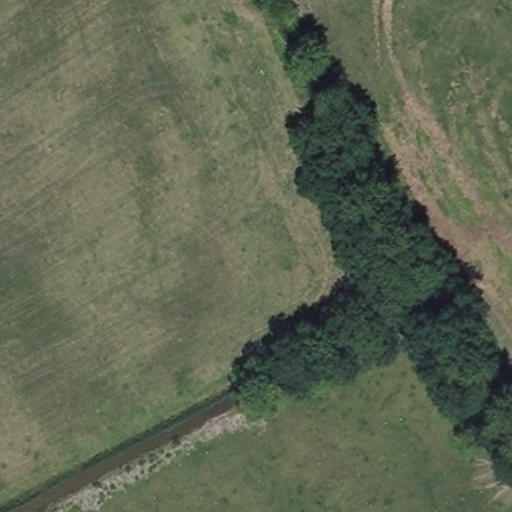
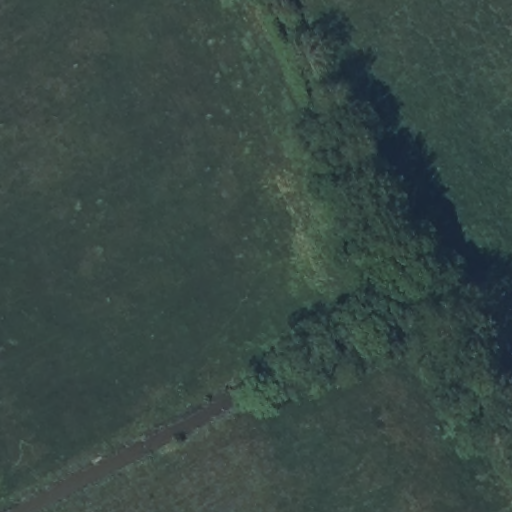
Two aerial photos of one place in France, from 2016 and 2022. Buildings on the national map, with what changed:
[]

